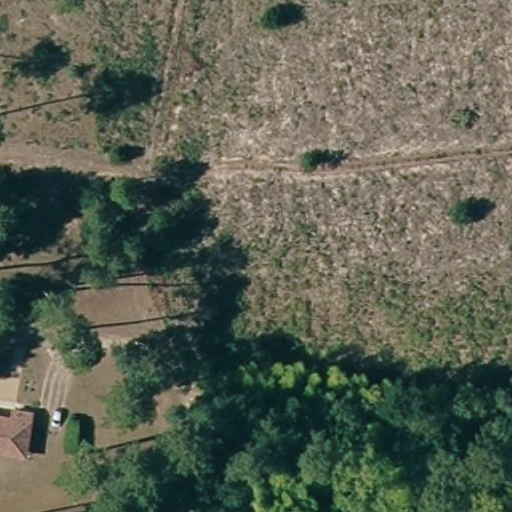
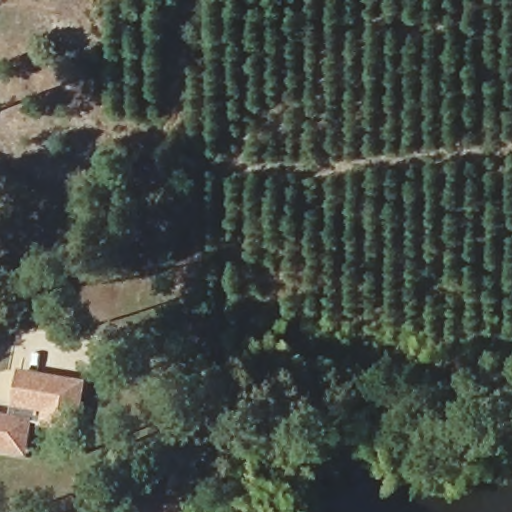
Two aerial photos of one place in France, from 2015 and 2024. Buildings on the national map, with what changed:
new [(19,370),(86,382),(78,435),(30,427),(33,409),(14,406),(19,370)]
unchanged [(0,448),(0,413),(13,415),(14,406),(33,409),(29,436),(26,452),(9,450),(0,448)]

